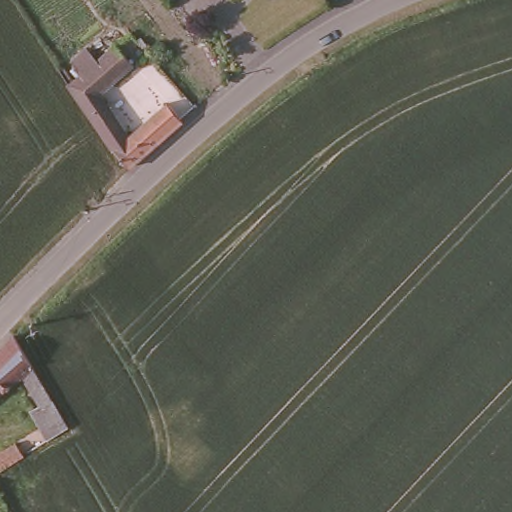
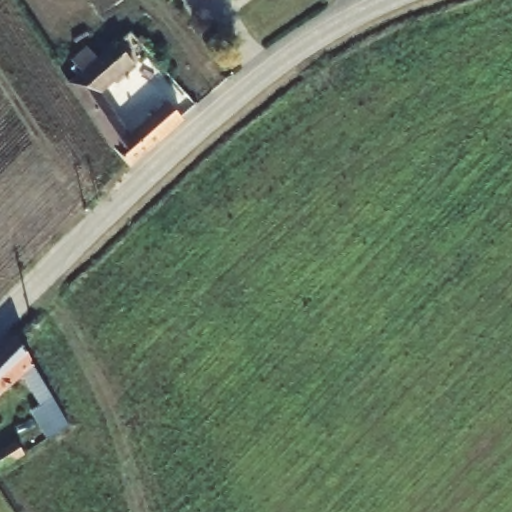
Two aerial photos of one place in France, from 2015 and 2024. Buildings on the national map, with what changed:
unchanged [(134,170),(70,83),(98,63),(91,52),(113,37),(139,71),(105,96),(134,138),(173,107),(186,122),(134,170)]
unchanged [(69,428),(33,450),(27,440),(44,429),(31,405),(39,400),(24,381),(0,399),(0,352),(12,337),(69,428)]
unchanged [(14,448),(23,462),(0,476),(0,458),(14,448)]

